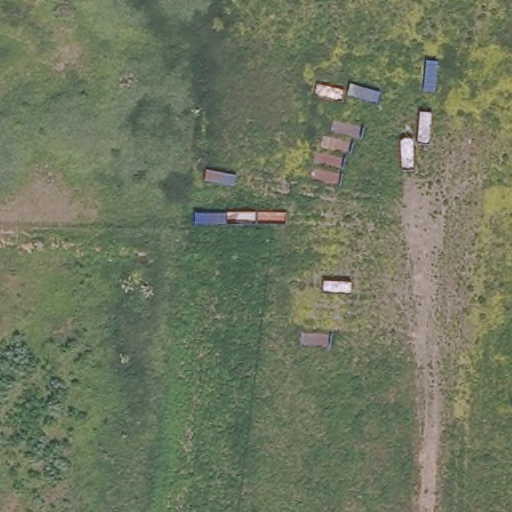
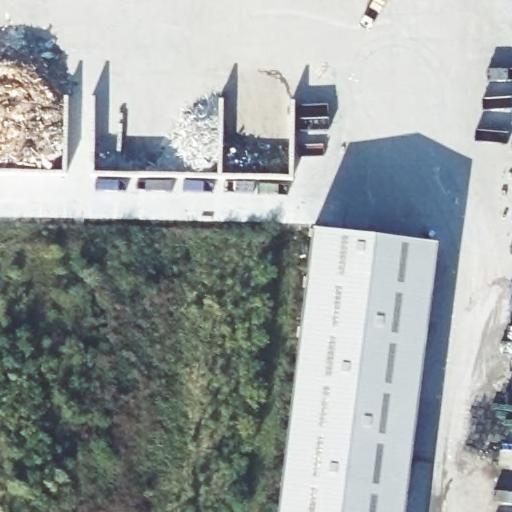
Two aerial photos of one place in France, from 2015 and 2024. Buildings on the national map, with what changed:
new [(312,233),(436,247),(403,512),(278,512),(312,233)]

